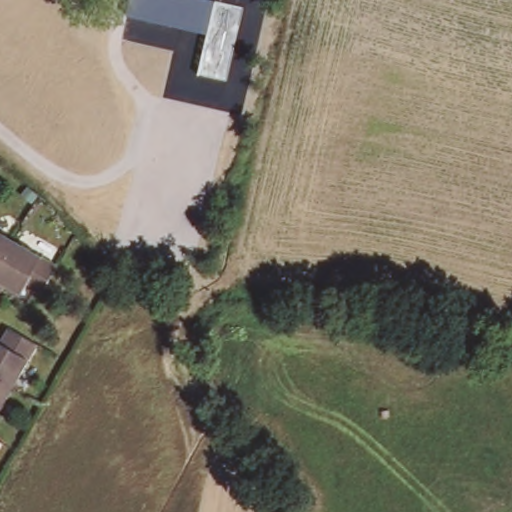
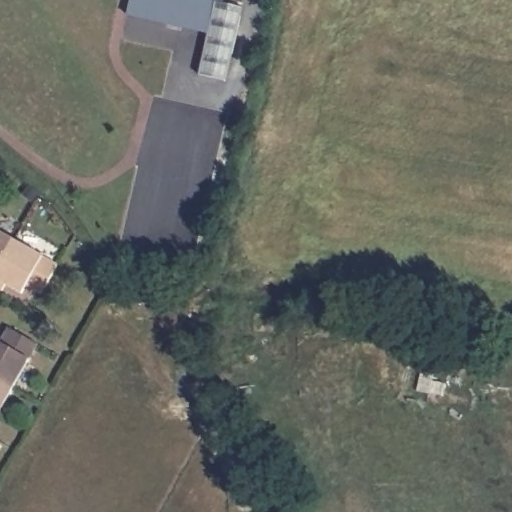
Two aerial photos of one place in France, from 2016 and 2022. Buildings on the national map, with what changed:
unchanged [(206,34),(125,17),(129,0),(213,0),(206,34)]
unchanged [(59,265),(42,296),(28,287),(24,295),(8,286),(5,291),(0,288),(0,231),(59,265)]
unchanged [(0,342),(6,332),(38,350),(0,416),(0,341),(0,342)]

